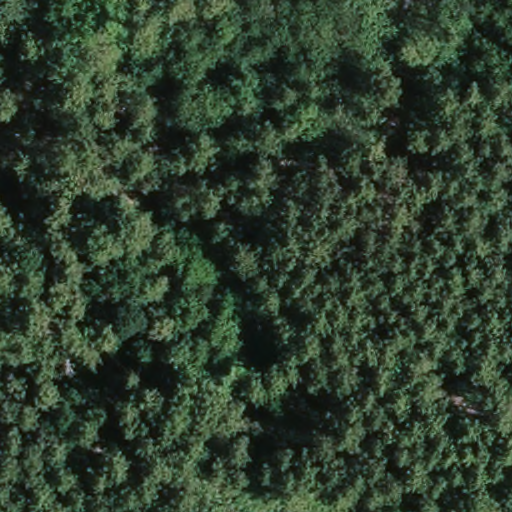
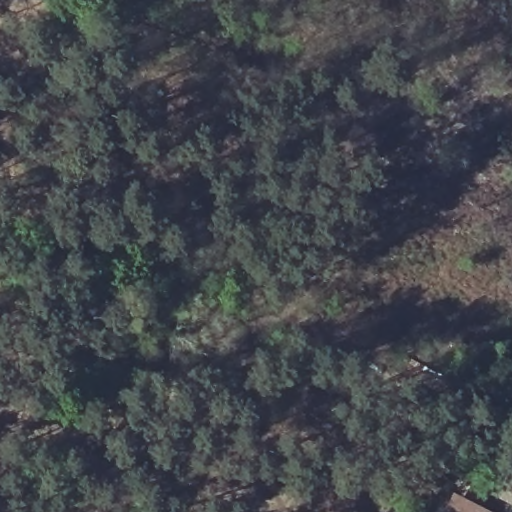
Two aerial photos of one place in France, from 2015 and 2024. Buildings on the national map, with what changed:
new [(492,512),(444,512),(455,493),(492,512)]

